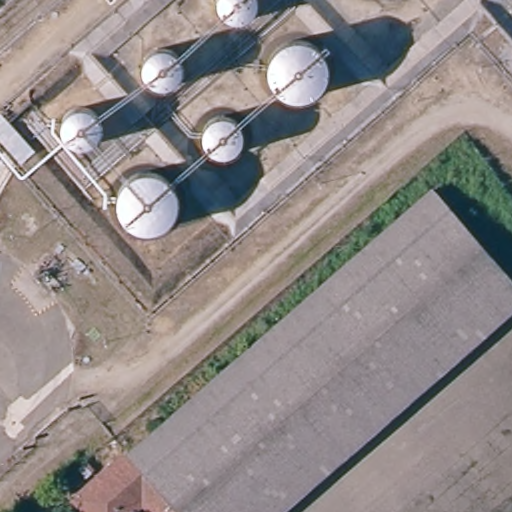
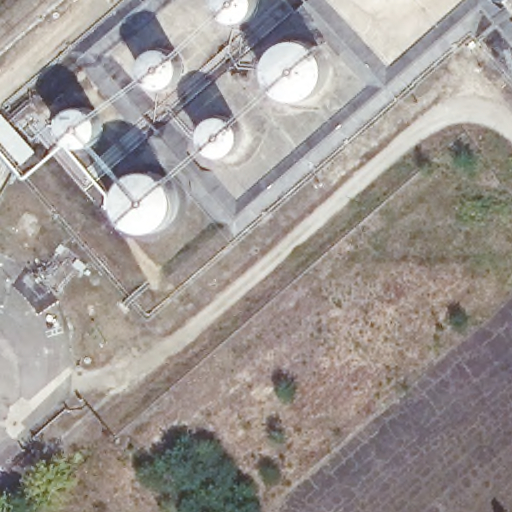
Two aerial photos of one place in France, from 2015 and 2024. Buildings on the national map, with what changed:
demolished [(426,187),(511,280),(244,512),(149,512),(139,502),(127,512),(82,512),(69,498),(123,451),(426,187)]

